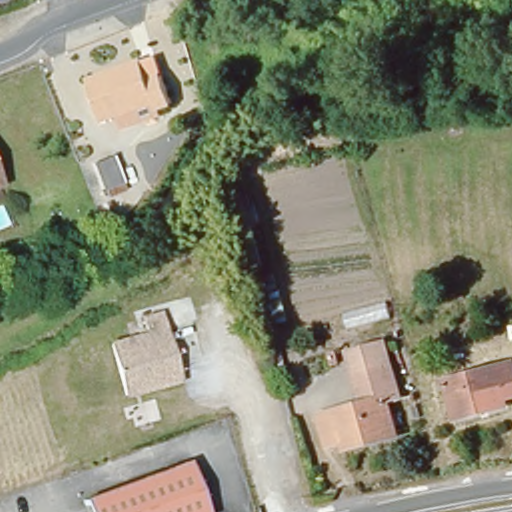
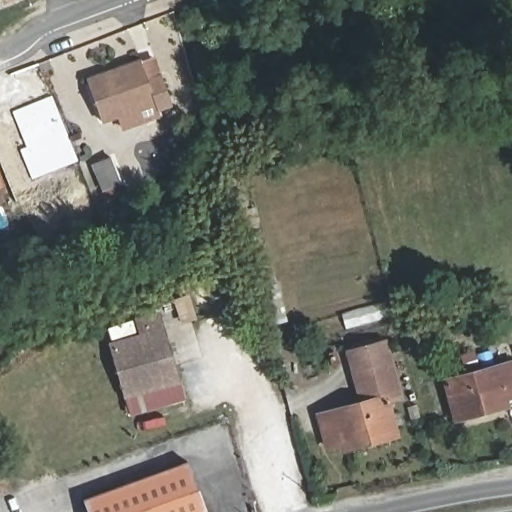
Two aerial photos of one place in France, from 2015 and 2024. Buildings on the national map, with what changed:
unchanged [(122,123),(118,111),(102,117),(87,74),(155,50),(172,99),(160,103),(162,109),(122,123)]
new [(25,146),(11,112),(10,111),(51,95),(77,161),(31,180),(20,149),(25,146)]
unchanged [(104,190),(94,165),(111,157),(120,181),(104,190)]
unchanged [(164,329),(179,380),(127,395),(112,344),(164,329)]
unchanged [(395,396),(383,400),(392,435),(340,449),(339,442),(322,446),(315,415),(357,402),(344,352),(380,341),(395,396)]
unchanged [(507,405),(456,419),(445,381),(512,363),(512,397),(506,398),(507,405)]
unchanged [(189,462),(208,512),(89,512),(85,500),(189,462)]

